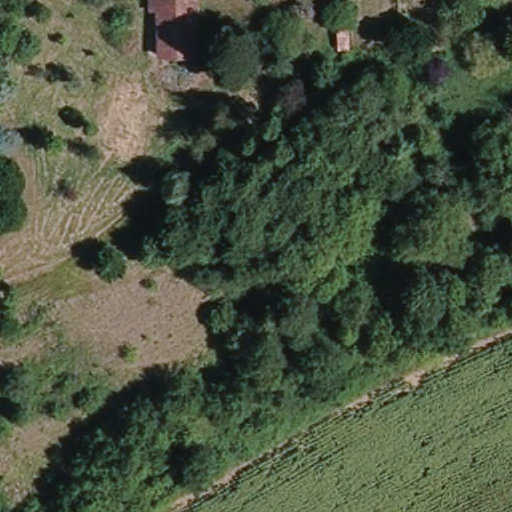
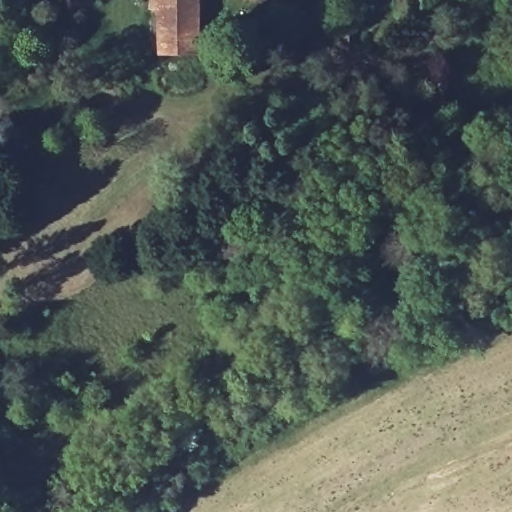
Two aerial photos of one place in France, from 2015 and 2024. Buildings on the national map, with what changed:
unchanged [(148,0),(195,0),(195,54),(157,54),(157,8),(148,8),(148,0)]

